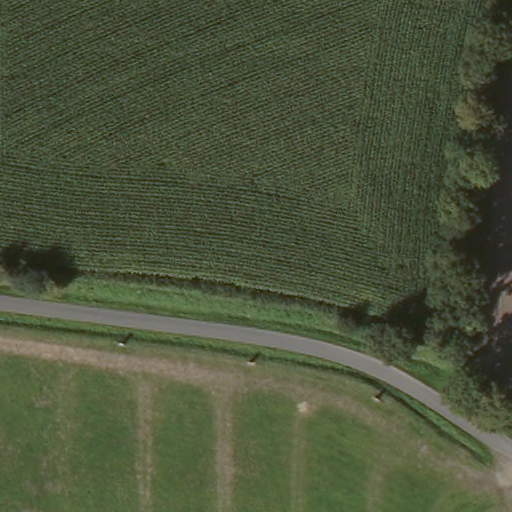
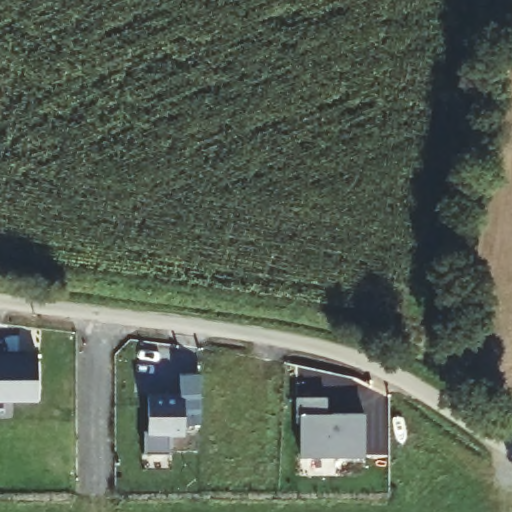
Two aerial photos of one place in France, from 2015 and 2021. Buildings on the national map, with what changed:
new [(38,399),(0,400),(0,356),(36,356),(38,399)]
new [(141,437),(146,437),(146,399),(178,399),(178,378),(198,378),(198,429),(178,429),(178,438),(166,438),(166,458),(141,458),(141,437)]
new [(294,400),(326,400),(325,418),(363,419),(361,460),(298,459),(298,417),(294,417),(294,400)]

